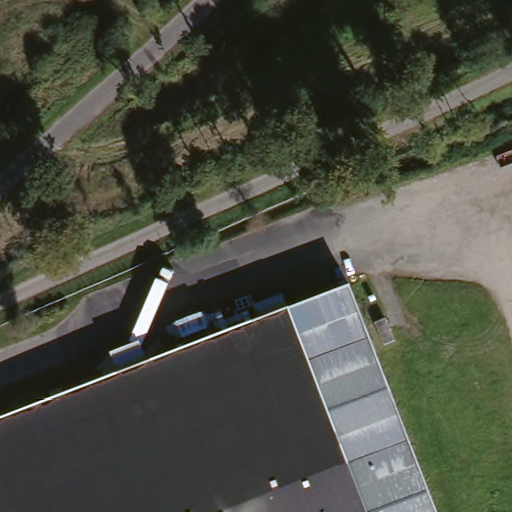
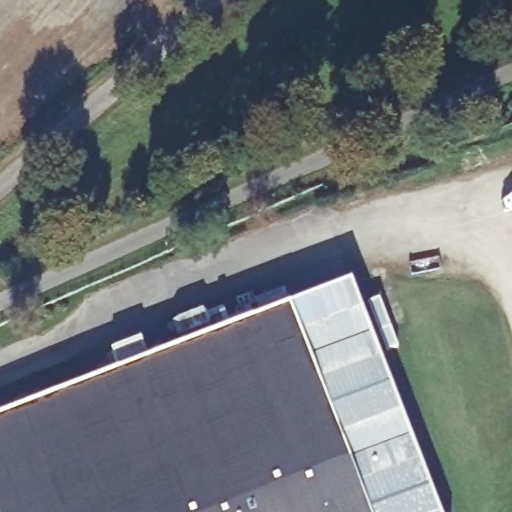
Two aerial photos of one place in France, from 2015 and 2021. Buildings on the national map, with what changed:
unchanged [(359,280),(442,512),(0,512),(0,413),(359,280)]

